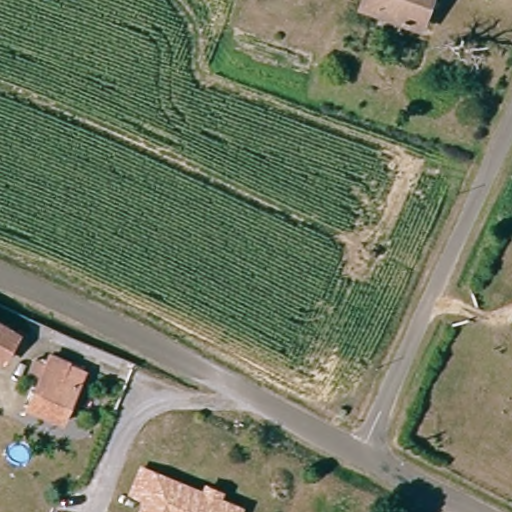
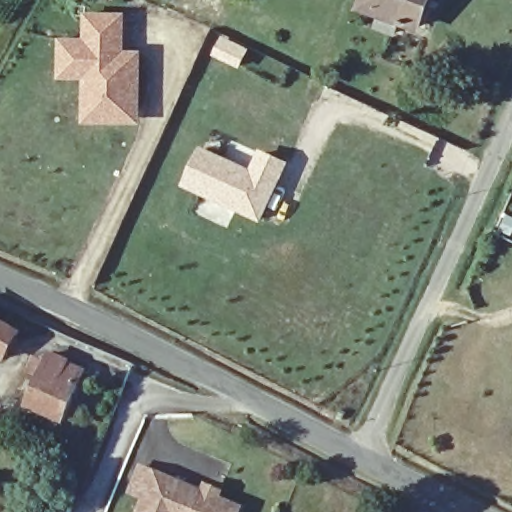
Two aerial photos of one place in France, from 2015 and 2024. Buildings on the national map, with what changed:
unchanged [(408,16),(401,32),(382,25),(389,9),(368,1),(369,0),(437,0),(429,22),(408,16)]
new [(127,120),(84,120),(84,104),(84,76),(60,75),(60,40),(85,40),(85,15),(121,15),(120,52),(137,52),(136,110),(136,120),(127,120)]
new [(222,41),(245,52),(239,65),(216,54),(222,41)]
new [(200,152),(251,176),(260,156),(285,167),(260,222),(184,188),(200,152)]
unchanged [(9,352),(0,349),(0,305),(0,306),(25,316),(13,344),(9,352)]
unchanged [(34,377),(38,366),(43,356),(53,361),(57,353),(82,366),(80,372),(88,376),(69,425),(33,411),(45,381),(34,377)]
unchanged [(203,488),(205,483),(227,491),(225,498),(245,506),(243,512),(137,512),(142,500),(133,497),(127,494),(140,465),(150,467),(203,488)]

